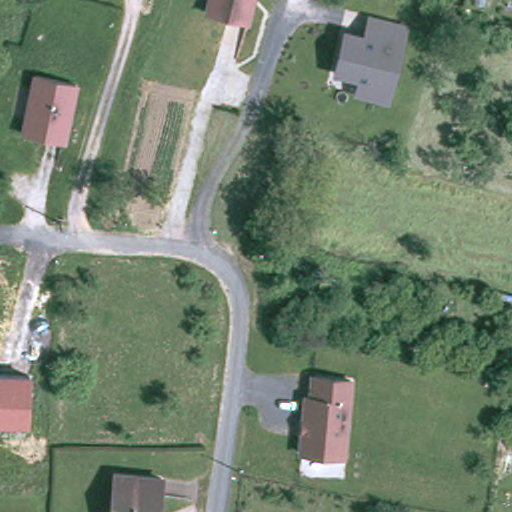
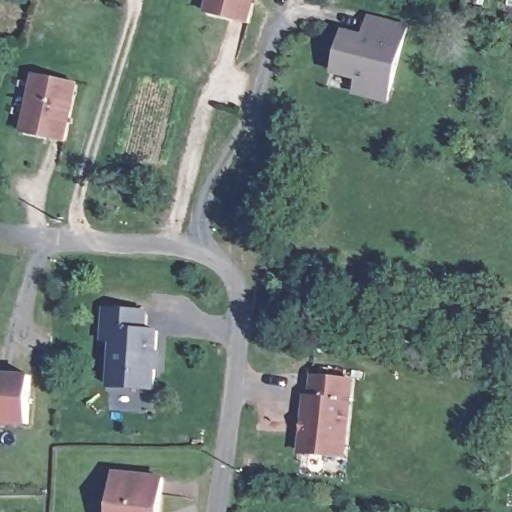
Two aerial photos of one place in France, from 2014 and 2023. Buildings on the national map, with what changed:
unchanged [(204,14),(207,0),(255,0),(249,24),(204,14)]
unchanged [(364,32),(369,12),(407,20),(390,103),(352,94),(355,79),(332,74),(343,27),(364,32)]
unchanged [(66,143),(34,137),(25,135),(37,77),(51,80),(77,85),(66,143)]
new [(156,391),(108,389),(110,342),(101,342),(102,309),(141,311),(140,328),(160,329),(156,391)]
unchanged [(29,425),(0,424),(0,373),(31,374),(29,425)]
unchanged [(342,456),(342,460),(300,454),(301,447),(307,399),(312,400),(313,398),(316,380),(351,385),(349,405),(342,456)]
unchanged [(161,512),(115,512),(120,471),(166,476),(161,512)]

